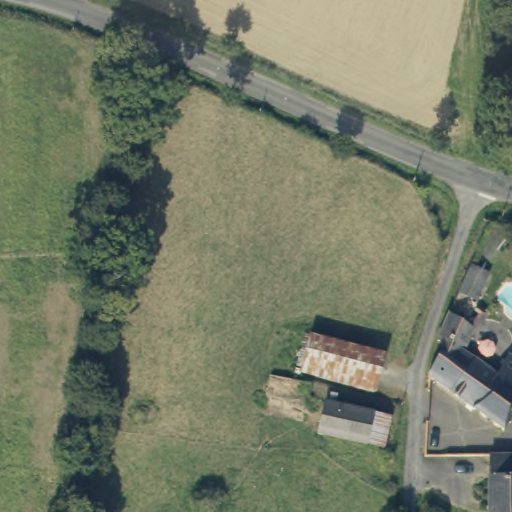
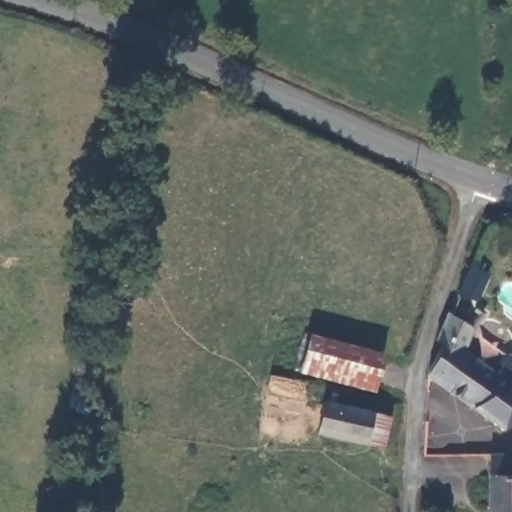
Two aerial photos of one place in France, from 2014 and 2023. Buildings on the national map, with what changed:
unchanged [(507,430),(425,378),(444,345),(435,338),(447,310),(476,327),(462,353),(495,372),(508,354),(512,357),(512,422),(507,430)]
unchanged [(375,394),(329,381),(300,374),(309,336),(368,351),(384,355),(375,394)]
unchanged [(384,452),(368,448),(317,436),(325,402),(376,415),(392,418),(384,452)]
unchanged [(489,445),(512,445),(512,512),(491,512),(489,445)]

